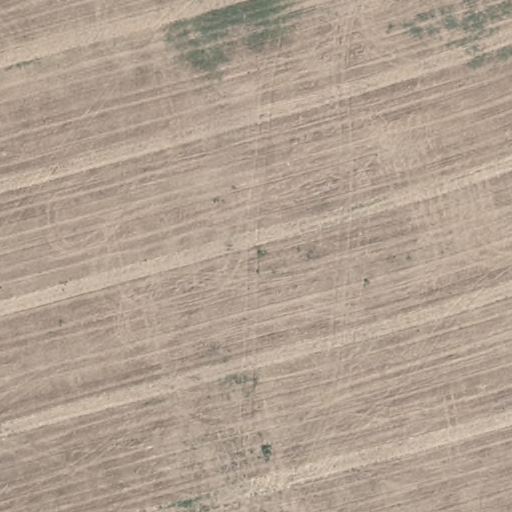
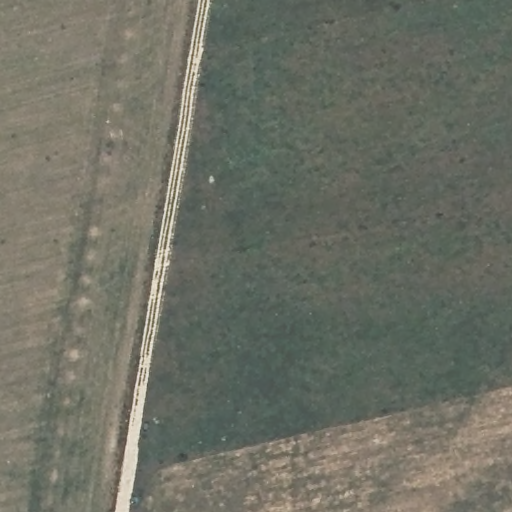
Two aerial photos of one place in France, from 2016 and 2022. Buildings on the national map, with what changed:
[]

